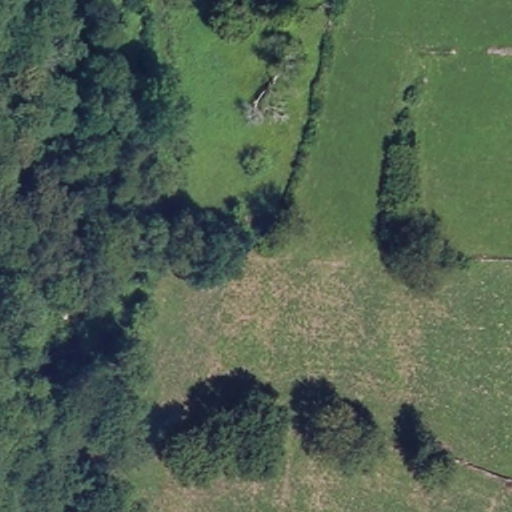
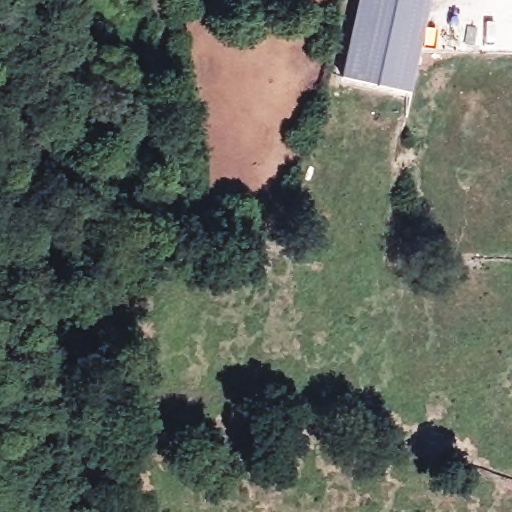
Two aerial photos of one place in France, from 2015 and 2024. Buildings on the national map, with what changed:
new [(407,92),(340,77),(358,0),(428,0),(407,92)]

